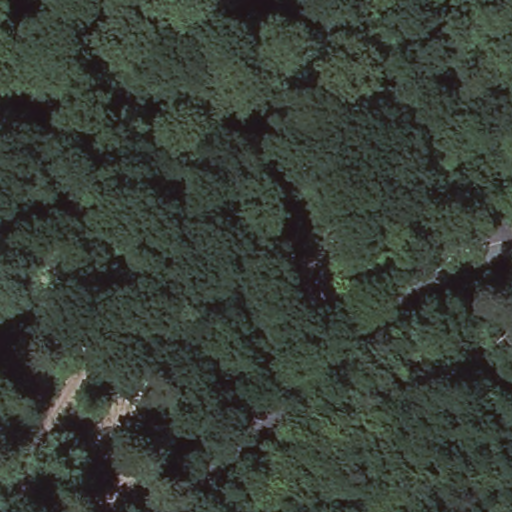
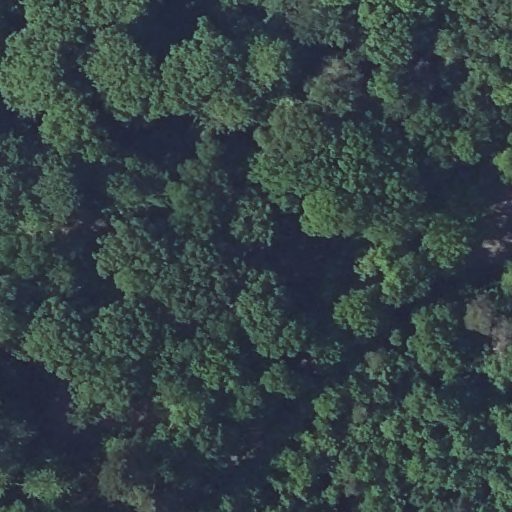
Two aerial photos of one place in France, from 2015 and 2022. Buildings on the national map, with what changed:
[]

